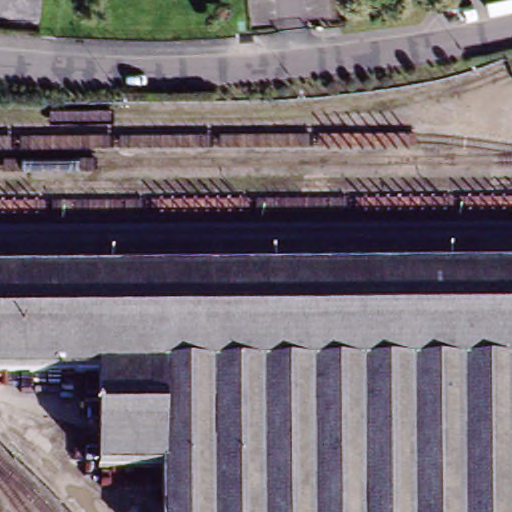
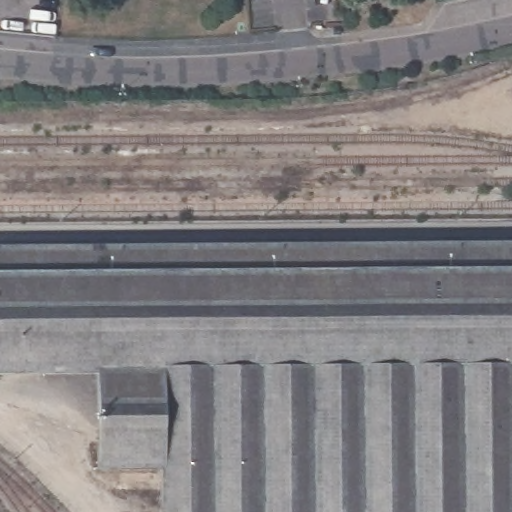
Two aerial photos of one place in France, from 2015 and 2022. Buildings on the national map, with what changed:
unchanged [(96,468),(95,372),(0,374),(0,245),(199,245),(400,242),(512,242),(512,512),(159,512),(158,467),(96,468)]

